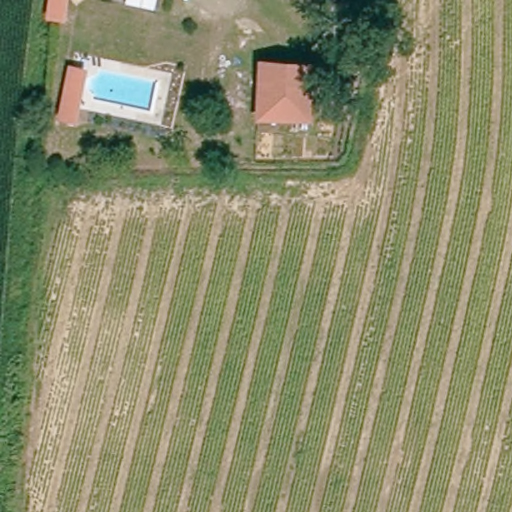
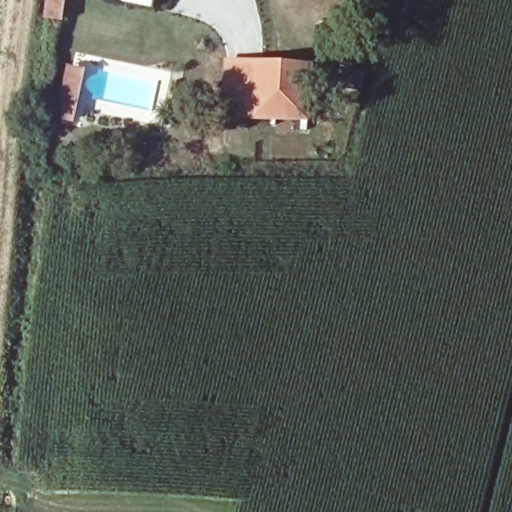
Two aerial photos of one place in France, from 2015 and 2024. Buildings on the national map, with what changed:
unchanged [(310,68),(307,116),(257,113),(261,64),(310,68)]

